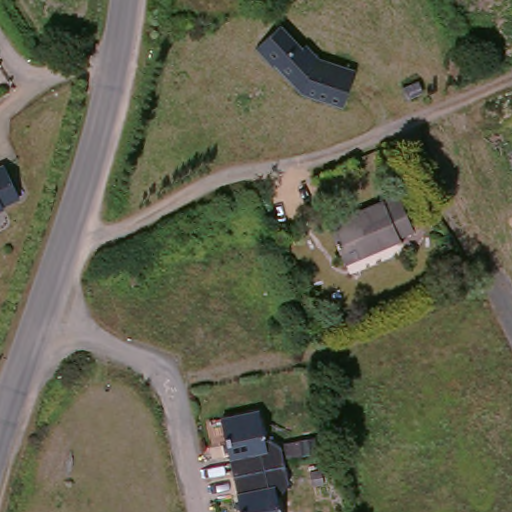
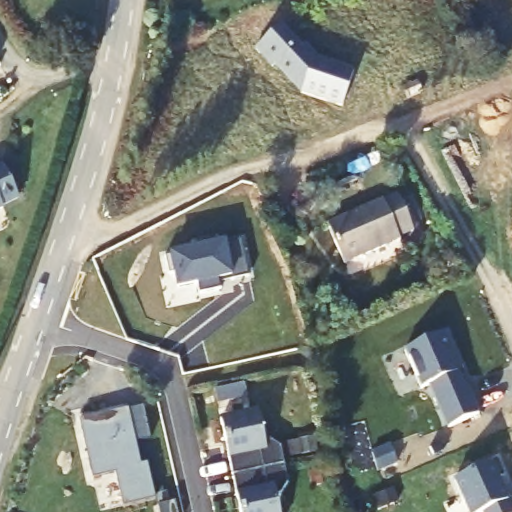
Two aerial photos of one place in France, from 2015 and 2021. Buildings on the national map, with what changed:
unchanged [(357,70),(350,103),(302,93),(282,66),(275,72),(254,44),(278,25),(298,50),(305,44),(318,61),(357,70)]
unchanged [(23,192),(6,200),(7,202),(0,206),(0,164),(7,160),(23,192)]
unchanged [(397,190),(416,230),(350,261),(331,222),(397,190)]
new [(197,247),(196,241),(215,237),(216,243),(242,237),(250,274),(232,278),(230,274),(219,276),(222,287),(200,292),(197,281),(179,285),(175,271),(170,272),(165,254),(197,247)]
new [(442,334),(451,354),(446,357),(461,388),(464,387),(477,414),(448,429),(428,386),(419,391),(401,354),(442,334)]
new [(169,500),(155,503),(154,496),(122,503),(115,470),(92,474),(80,415),(129,405),(130,409),(145,406),(149,426),(151,436),(136,439),(140,462),(147,461),(153,492),(166,489),(169,500)]
unchanged [(254,405),(262,439),(277,439),(285,487),(271,490),(275,512),(237,512),(217,413),(254,405)]
new [(390,444),(398,461),(380,470),(372,453),(390,444)]
new [(505,476),(499,479),(509,500),(512,499),(512,512),(471,512),(455,481),(497,461),(505,476)]
new [(391,488),(397,501),(381,508),(375,495),(391,488)]

